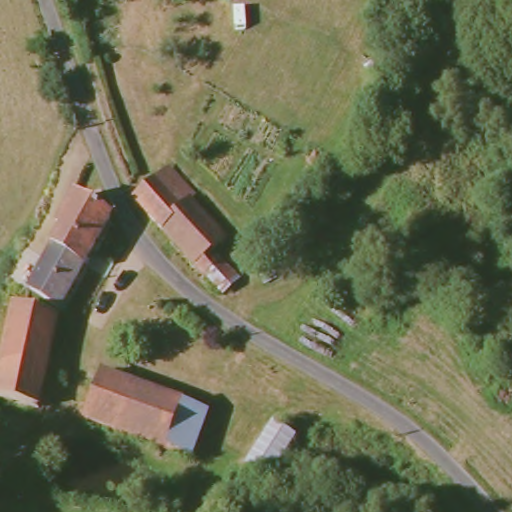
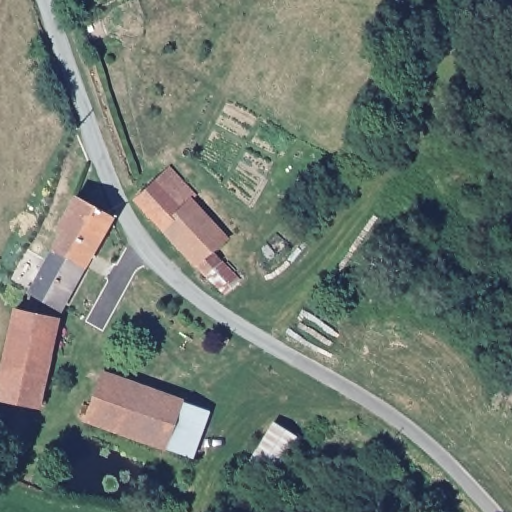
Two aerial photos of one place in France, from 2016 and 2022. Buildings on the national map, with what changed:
unchanged [(228,297),(210,280),(204,274),(137,201),(160,180),(172,168),(200,199),(195,204),(230,245),(216,255),(225,266),(241,286),(228,297)]
unchanged [(114,223),(60,310),(31,293),(67,235),(61,231),(80,202),(114,223)]
unchanged [(23,321),(60,329),(43,415),(0,405),(0,393),(15,320),(23,321)]
unchanged [(180,402),(165,450),(85,422),(101,375),(180,402)]
unchanged [(207,412),(191,459),(165,450),(180,402),(207,412)]
unchanged [(301,441),(275,487),(250,473),(276,426),(301,441)]

